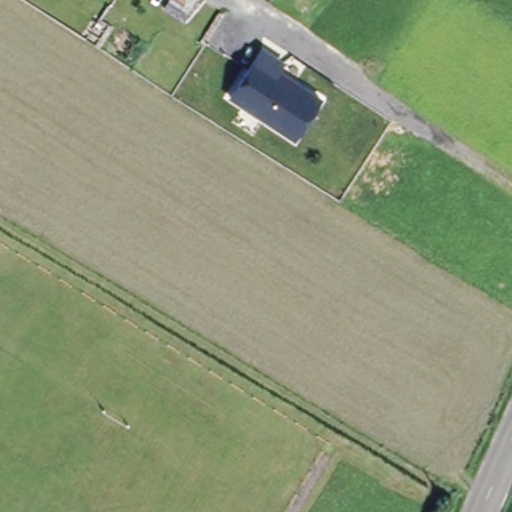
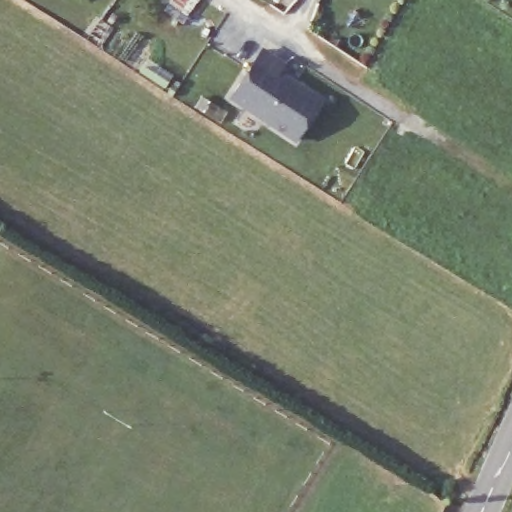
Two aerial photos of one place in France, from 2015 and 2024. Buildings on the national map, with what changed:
unchanged [(283,62),(278,69),(320,97),(295,138),(230,96),(261,47),(276,58),(283,62)]

